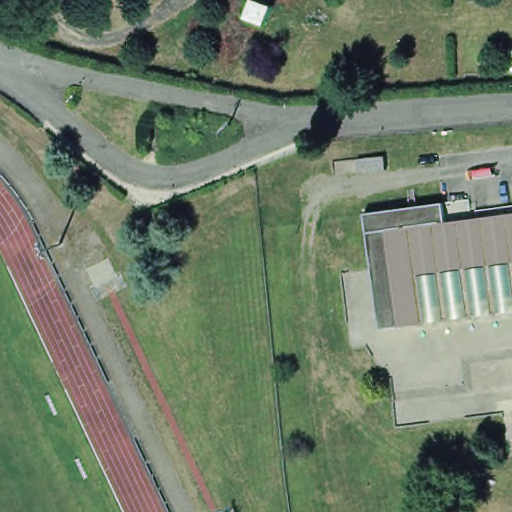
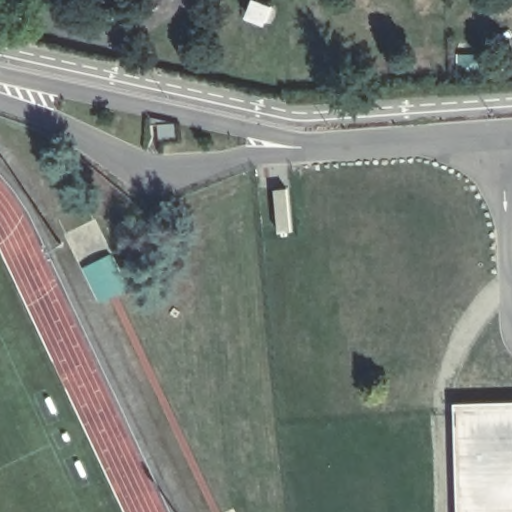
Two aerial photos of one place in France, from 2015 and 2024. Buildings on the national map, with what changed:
demolished [(377,151),(408,147),(410,163),(380,167),(377,151)]
demolished [(377,232),(375,210),(455,200),(457,220),(377,232)]
demolished [(391,329),(377,232),(457,220),(512,213),(512,313),(391,329)]
new [(512,402),(512,512),(457,512),(454,404),(512,402)]

